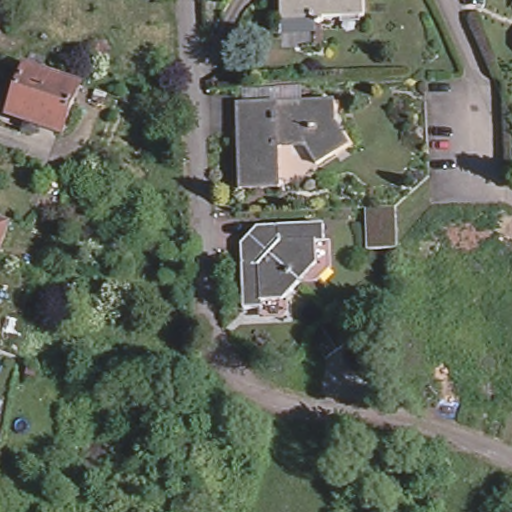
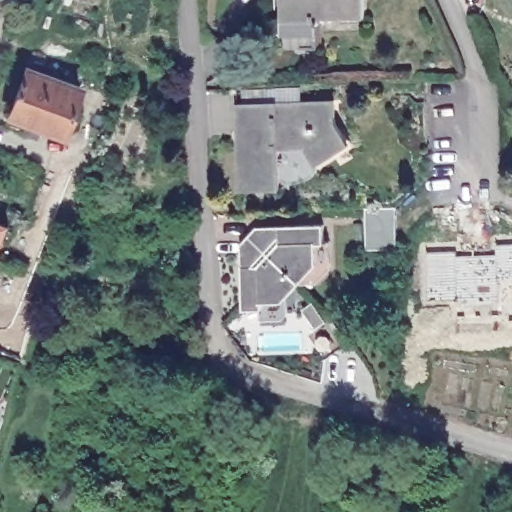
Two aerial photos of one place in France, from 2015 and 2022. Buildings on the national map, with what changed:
unchanged [(357,19),(316,21),(317,23),(313,24),(313,27),(309,27),(309,24),(304,24),(305,22),(275,23),(274,0),(357,0),(357,19)]
unchanged [(24,129),(27,121),(9,115),(25,66),(30,53),(45,59),(40,71),(79,85),(62,134),(37,125),(34,132),(24,129)]
unchanged [(277,186),(277,180),(240,182),(240,188),(237,188),(237,145),(245,144),(245,131),(241,131),(240,104),(234,104),(235,101),(275,100),(275,108),(297,106),(296,99),(332,98),(334,121),(347,142),(279,187),(277,186)]
unchanged [(392,206),(395,247),(364,248),(363,207),(392,206)]
unchanged [(250,237),(252,238),(258,230),(258,224),(319,223),(320,239),(325,239),(325,266),(309,266),(295,280),(282,294),(282,310),(256,311),(256,306),(239,306),(237,246),(243,246),(250,239),(249,238),(250,238),(250,237)]
unchanged [(5,225),(0,238),(0,224),(5,225)]
new [(455,257),(495,256),(495,245),(512,245),(512,283),(499,282),(500,306),(456,306),(456,302),(427,302),(426,255),(454,253),(455,257)]

